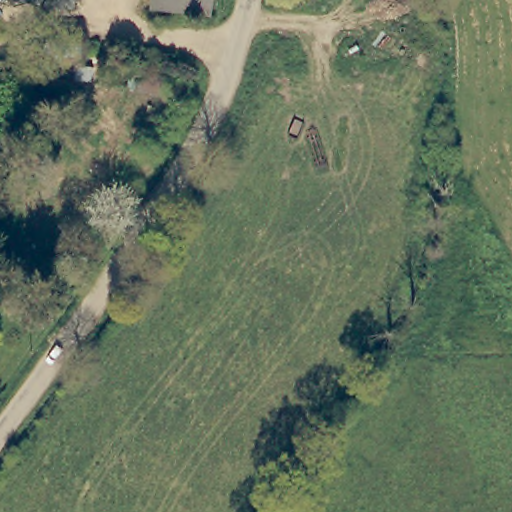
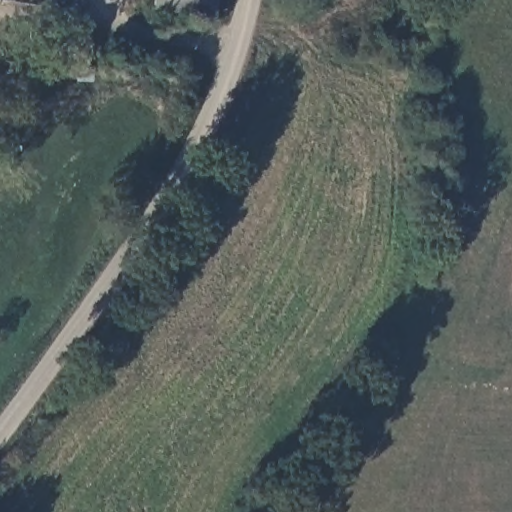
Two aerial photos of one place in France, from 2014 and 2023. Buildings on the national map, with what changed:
unchanged [(5,0),(70,0),(69,10),(5,0)]
unchanged [(159,12),(160,0),(213,0),(211,18),(159,12)]
unchanged [(78,71),(33,70),(34,44),(79,45),(78,71)]

